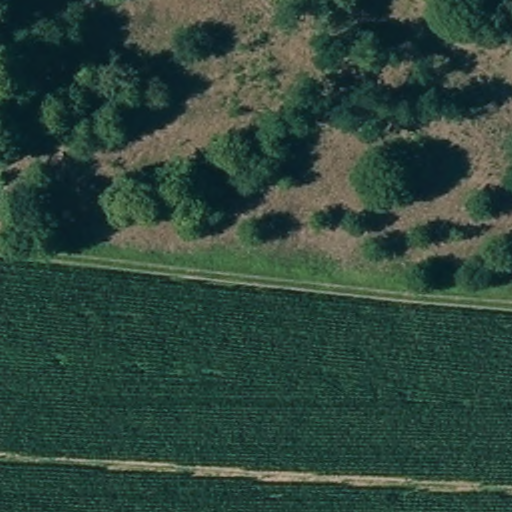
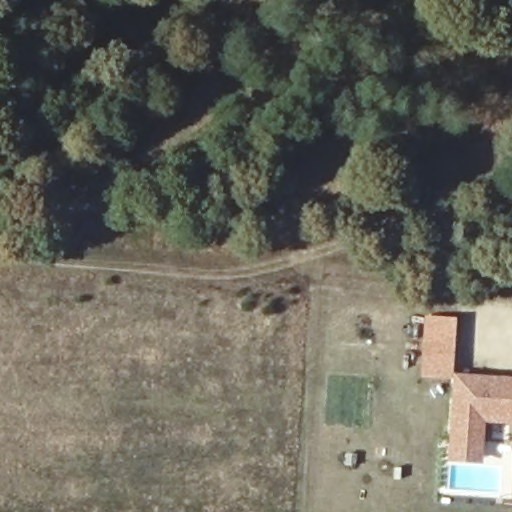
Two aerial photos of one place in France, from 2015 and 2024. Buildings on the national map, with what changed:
new [(425,315),(457,317),(454,374),(454,379),(421,377),(425,315)]
new [(512,378),(512,424),(487,422),(484,465),(449,462),(454,374),(512,378)]

